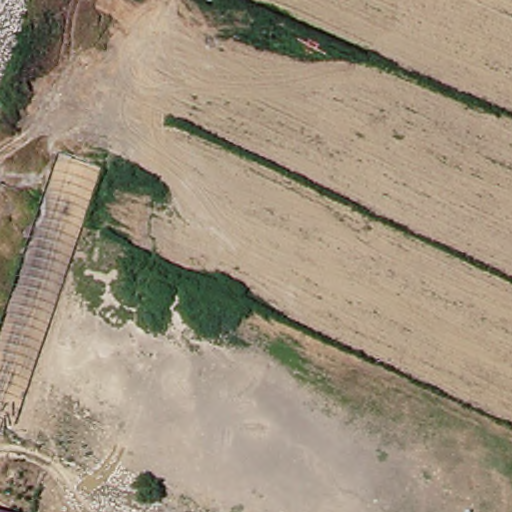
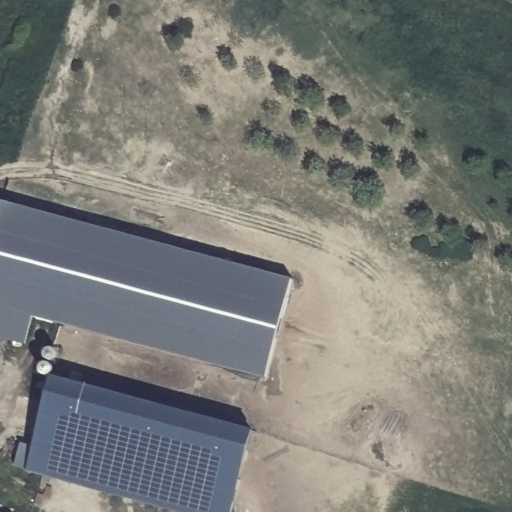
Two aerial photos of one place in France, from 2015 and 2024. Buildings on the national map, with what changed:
new [(262,377),(32,315),(25,345),(0,338),(0,198),(289,276),(262,377)]
new [(32,443),(49,375),(252,429),(229,512),(185,512),(14,467),(18,440),(32,443)]
new [(0,512),(0,511),(5,512),(0,512)]

